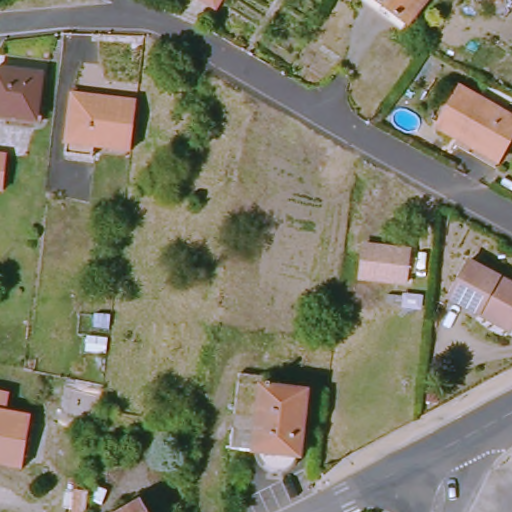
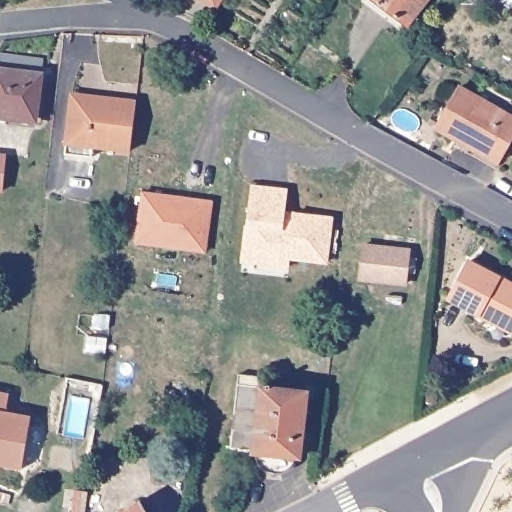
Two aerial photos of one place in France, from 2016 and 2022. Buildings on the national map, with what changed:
unchanged [(189,2),(190,0),(210,0),(204,10),(189,2)]
unchanged [(376,0),(421,0),(405,22),(376,0)]
unchanged [(0,120),(0,75),(37,78),(33,123),(0,120)]
unchanged [(466,145),(430,125),(453,84),(512,117),(512,127),(498,153),(490,164),(462,151),(466,145)]
unchanged [(61,108),(61,100),(87,103),(127,107),(121,156),(56,148),(61,108)]
unchanged [(7,154),(3,192),(0,192),(0,153),(7,154)]
new [(288,190),(286,215),(294,217),(295,213),(331,218),(327,260),(291,255),(290,264),(262,261),(264,246),(251,244),(253,223),(247,222),(252,186),(288,190)]
new [(195,200),(212,202),(206,253),(135,243),(143,193),(174,197),(174,204),(194,207),(195,200)]
unchanged [(356,278),(360,243),(405,248),(401,282),(356,278)]
unchanged [(442,300),(462,263),(512,289),(512,317),(507,327),(504,333),(473,316),(442,300)]
unchanged [(85,364),(87,349),(107,351),(105,366),(85,364)]
unchanged [(225,453),(233,377),(258,379),(257,389),(250,456),(225,453)]
unchanged [(293,460),(290,469),(285,473),(278,476),(272,477),(265,475),(258,469),(255,463),(255,456),(250,456),(257,389),(303,394),(296,460),(293,460)]
unchanged [(10,393),(6,410),(31,415),(22,470),(0,466),(0,392),(10,393)]
unchanged [(88,495),(86,512),(73,512),(75,495),(88,495)]
unchanged [(141,512),(117,512),(135,501),(141,512)]

